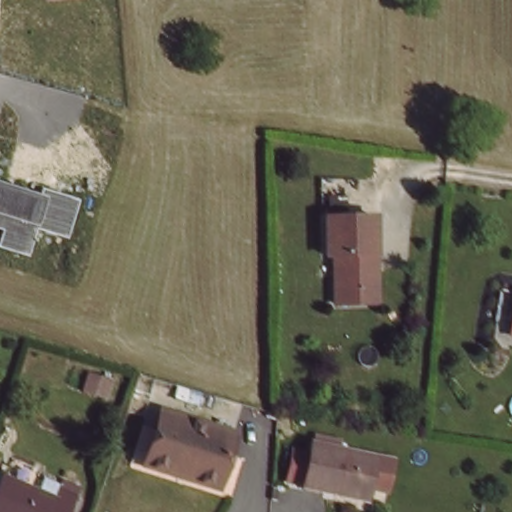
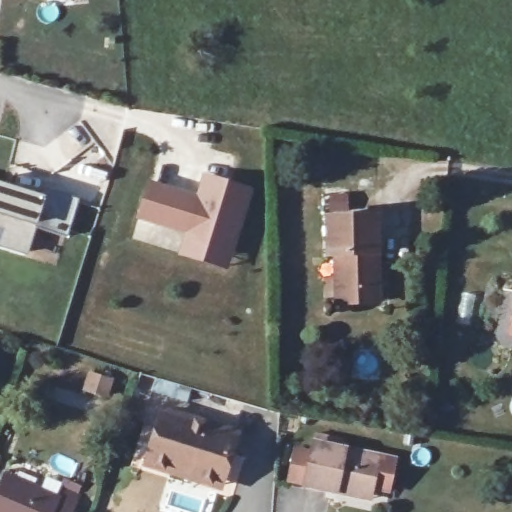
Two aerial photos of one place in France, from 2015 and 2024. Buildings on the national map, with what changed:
unchanged [(45,2),(44,0),(78,0),(45,2)]
new [(195,191),(202,169),(250,186),(230,264),(176,249),(181,228),(137,214),(147,178),(195,191)]
unchanged [(38,194),(41,187),(79,198),(68,238),(36,229),(28,257),(0,249),(0,236),(1,229),(0,229),(0,182),(38,194)]
unchanged [(378,244),(373,250),(379,262),(381,297),(338,298),(336,250),(329,242),(328,210),(375,208),(378,244)]
unchanged [(512,326),(512,332),(511,332),(512,326)]
unchanged [(173,475),(143,466),(161,413),(235,436),(221,477),(217,488),(173,475)]
unchanged [(373,456),(365,496),(301,481),(310,441),(373,456)]
unchanged [(406,458),(397,491),(370,484),(376,455),(406,458)]
unchanged [(60,483),(72,488),(63,512),(0,512),(0,480),(4,470),(55,490),(60,483)]

